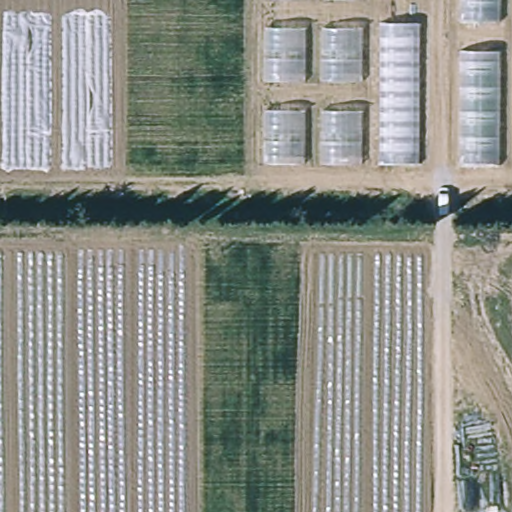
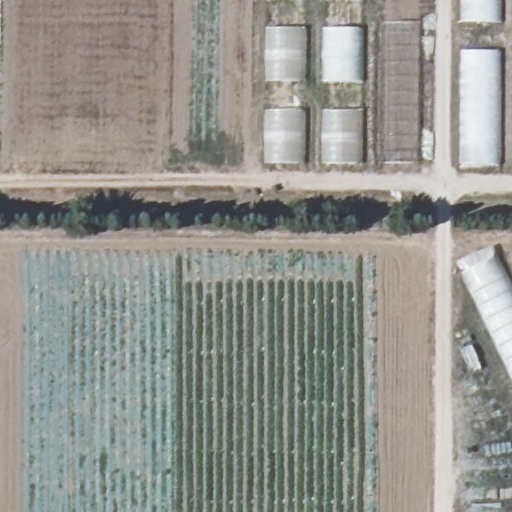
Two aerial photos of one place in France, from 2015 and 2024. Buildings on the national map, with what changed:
unchanged [(419,165),(263,164),(265,0),(421,0),(419,165)]
unchanged [(460,166),(460,0),(512,0),(512,165),(460,166)]
new [(463,273),(499,255),(510,282),(512,281),(512,377),(463,273)]

